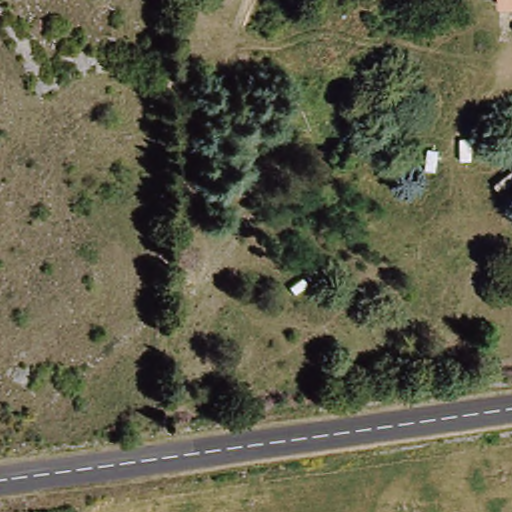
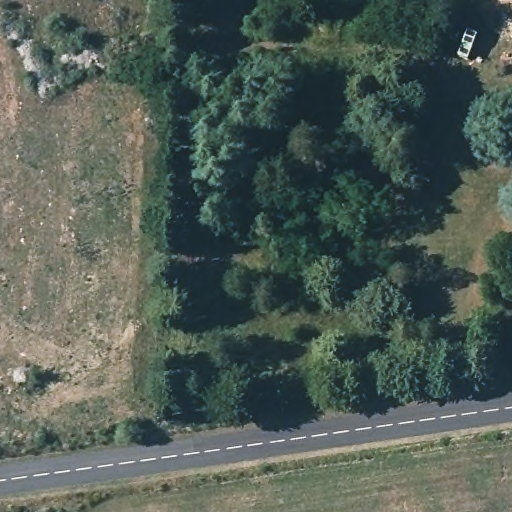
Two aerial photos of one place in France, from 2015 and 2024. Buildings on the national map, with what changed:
unchanged [(512,6),(502,6),(502,0),(512,0),(512,6)]

